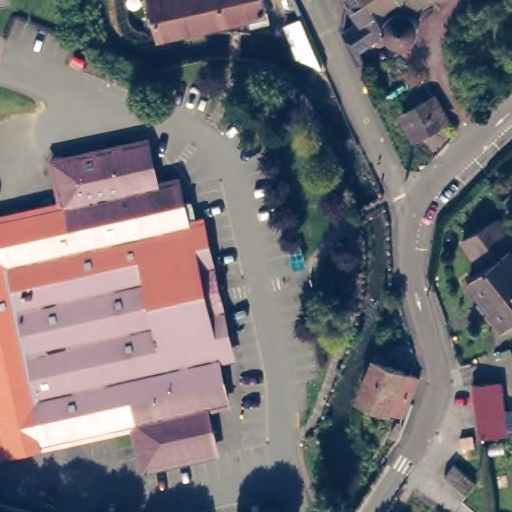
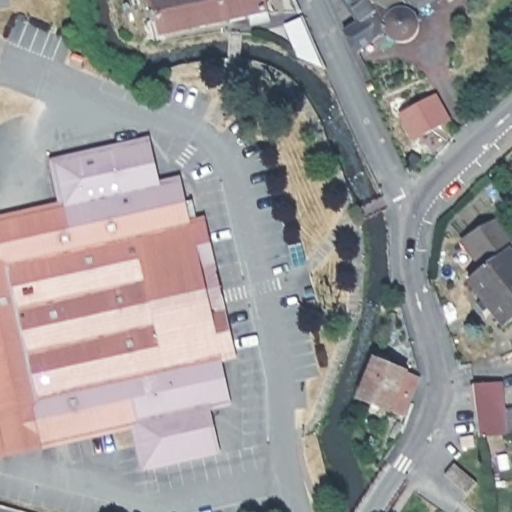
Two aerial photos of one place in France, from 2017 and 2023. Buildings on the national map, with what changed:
unchanged [(265,20),(245,24),(243,14),(152,33),(146,0),(261,0),(265,20)]
unchanged [(355,53),(340,33),(355,21),(352,17),(350,18),(347,17),(346,15),(346,12),(348,10),(342,0),(431,0),(355,53)]
unchanged [(442,0),(437,1),(436,0),(443,0),(442,0)]
unchanged [(282,23),(297,17),(319,64),(296,53),(282,23)]
unchanged [(432,95),(446,120),(413,137),(399,113),(432,95)]
unchanged [(142,471),(131,426),(45,445),(0,455),(0,267),(2,266),(0,253),(0,222),(60,208),(50,164),(120,148),(120,150),(140,145),(150,190),(173,185),(176,198),(183,229),(197,225),(227,358),(213,362),(223,406),(201,411),(211,456),(190,459),(191,460),(142,471)]
unchanged [(497,214),(512,233),(512,245),(511,246),(512,247),(512,316),(507,320),(473,273),(488,262),(468,235),(497,214)]
unchanged [(417,375),(405,398),(397,412),(357,397),(369,355),(417,375)]
unchanged [(476,410),(474,408),(473,385),(500,383),(503,432),(478,434),(476,410)]
unchanged [(472,434),(473,445),(462,446),(461,435),(472,434)]
unchanged [(455,462),(477,481),(468,492),(446,473),(455,462)]

